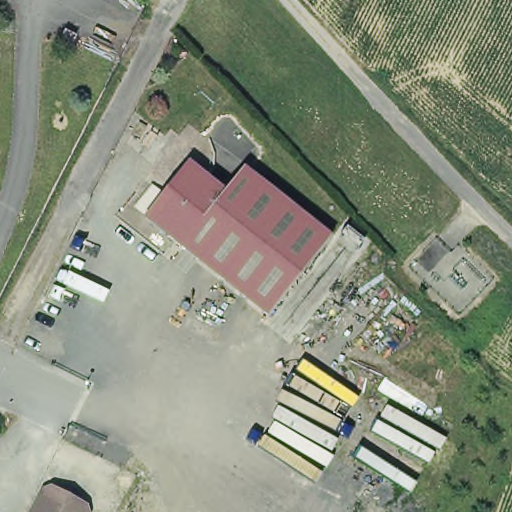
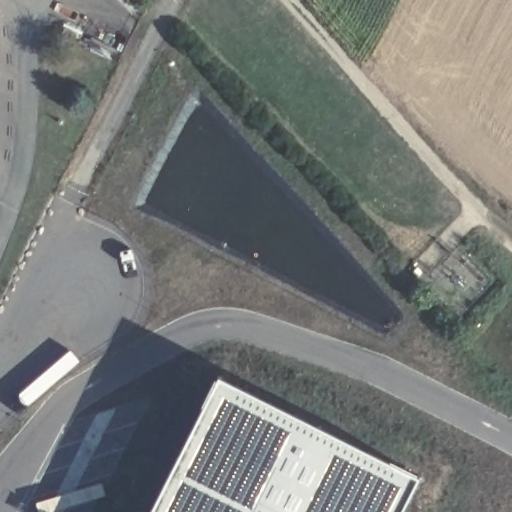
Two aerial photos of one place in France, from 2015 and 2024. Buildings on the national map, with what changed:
demolished [(144,212),(187,159),(225,190),(182,244),(144,212)]
new [(209,378),(412,477),(394,512),(142,512),(209,378)]
unchanged [(89,512),(32,512),(47,482),(92,504),(89,512)]

